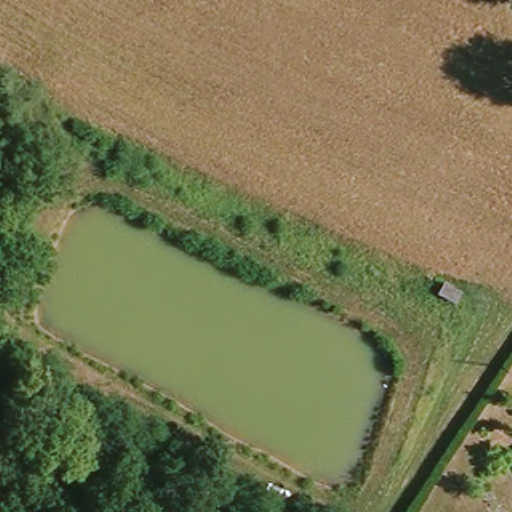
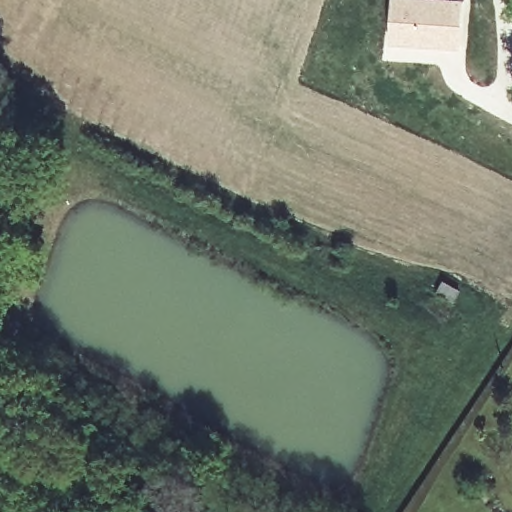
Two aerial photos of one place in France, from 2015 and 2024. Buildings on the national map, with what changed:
new [(392,42),(395,0),(466,0),(464,47),(392,42)]

